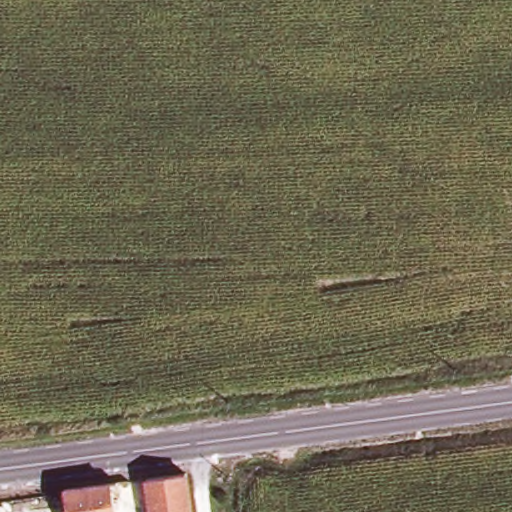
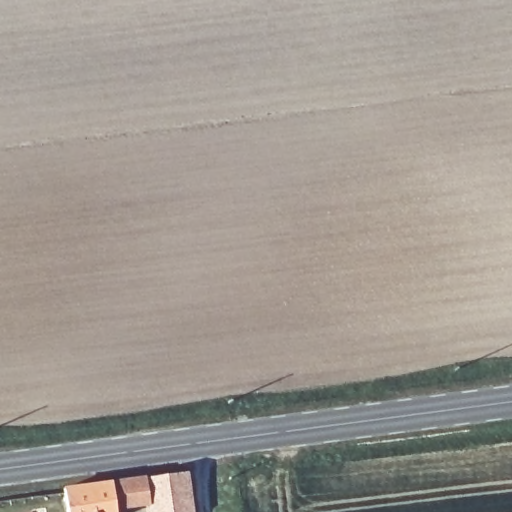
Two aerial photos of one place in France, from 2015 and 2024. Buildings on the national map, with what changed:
unchanged [(191,512),(149,512),(144,476),(184,471),(191,512)]
unchanged [(113,512),(65,512),(62,493),(111,487),(113,512)]

